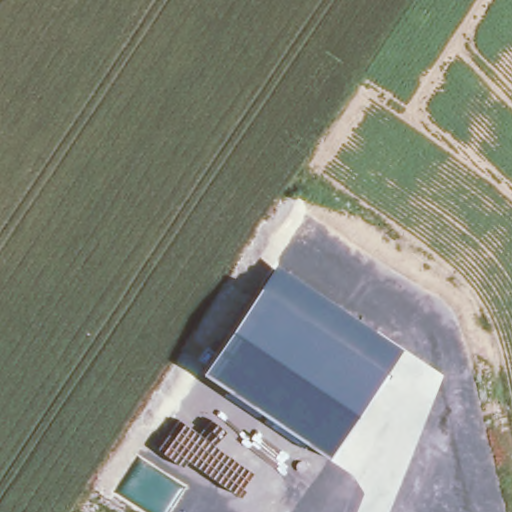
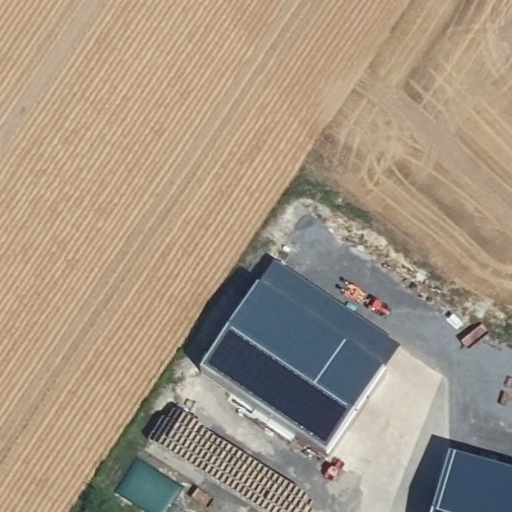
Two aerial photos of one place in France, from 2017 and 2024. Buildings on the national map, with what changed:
unchanged [(402,348),(330,460),(201,374),(276,262),(402,348)]
new [(512,473),(512,512),(435,512),(451,456),(512,473)]

